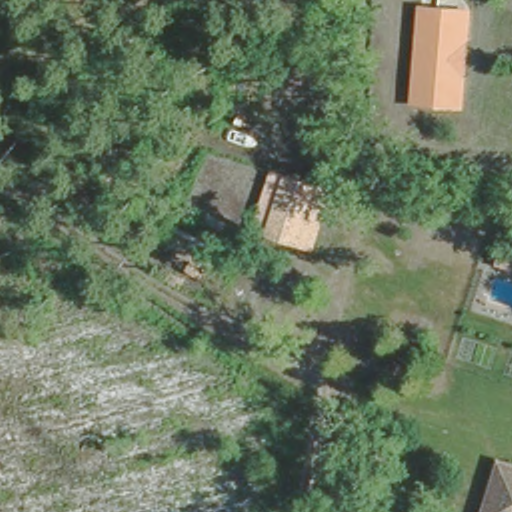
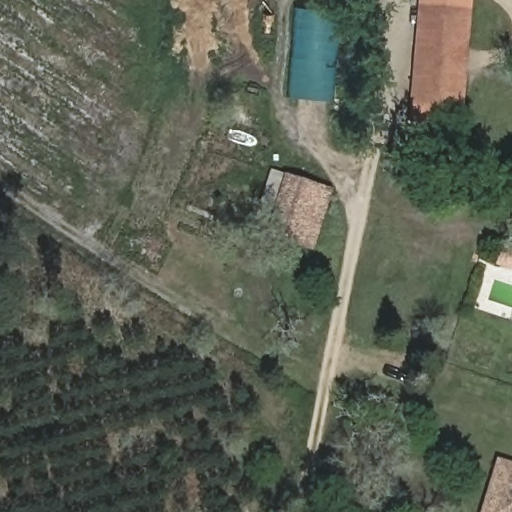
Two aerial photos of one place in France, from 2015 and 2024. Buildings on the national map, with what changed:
unchanged [(464,109),(409,105),(419,5),(472,10),(464,109)]
new [(332,11),(328,100),(290,95),(295,10),(332,11)]
unchanged [(317,219),(325,220),(315,250),(254,232),(271,171),(327,189),(317,219)]
unchanged [(508,462),(512,464),(512,512),(485,512),(501,460),(508,462)]

